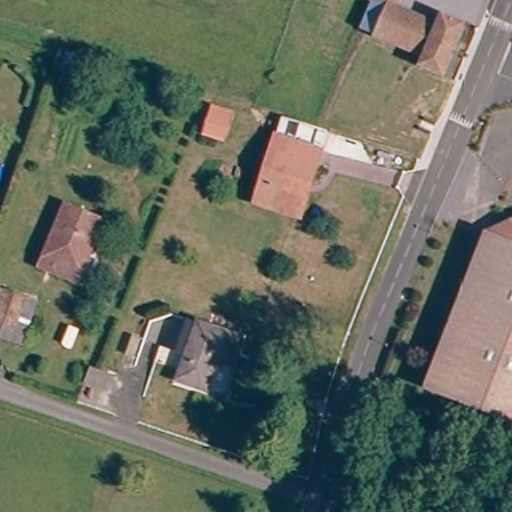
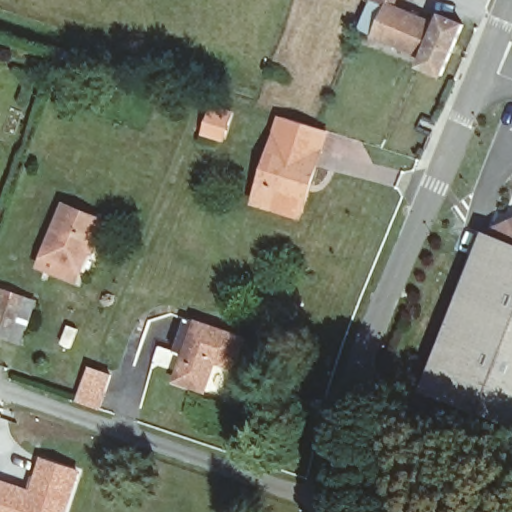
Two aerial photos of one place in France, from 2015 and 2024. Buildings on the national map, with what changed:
unchanged [(422,65),(426,56),(377,37),(377,35),(361,29),(372,2),(367,0),(398,0),(395,7),(440,24),(443,14),(466,23),(445,74),(422,65)]
unchanged [(95,50),(89,68),(58,60),(66,40),(95,50)]
unchanged [(242,116),(236,133),(215,127),(220,110),(242,116)]
unchanged [(290,212),(254,202),(275,136),(325,150),(311,192),(303,216),(290,212)]
unchanged [(35,264),(39,256),(61,204),(95,216),(87,234),(101,238),(95,254),(81,249),(75,266),(69,279),(35,264)]
unchanged [(417,405),(462,269),(470,249),(505,235),(512,232),(512,436),(417,405)]
unchanged [(39,301),(18,352),(0,346),(0,292),(2,288),(39,301)]
unchanged [(238,367),(221,362),(214,385),(186,378),(195,355),(176,349),(187,319),(207,326),(250,339),(238,367)]
unchanged [(87,362),(105,367),(96,387),(79,381),(87,362)]
new [(40,454),(82,469),(68,512),(0,512),(0,477),(29,486),(40,454)]

